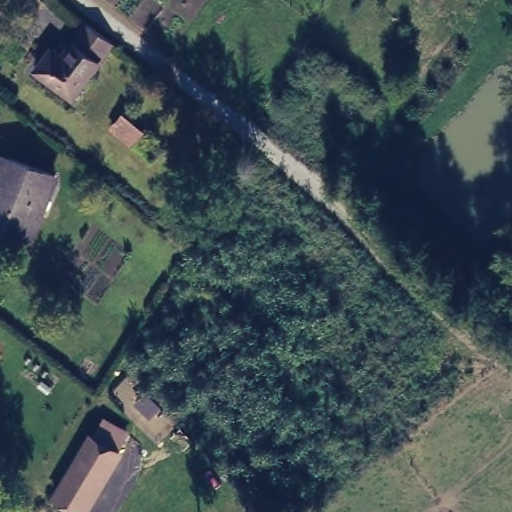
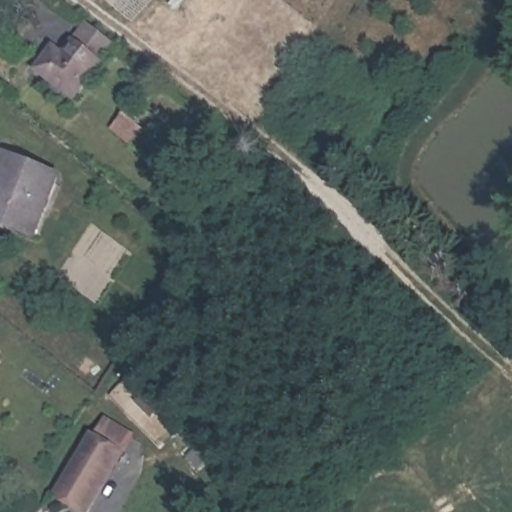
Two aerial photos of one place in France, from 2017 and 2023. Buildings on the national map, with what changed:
unchanged [(70,97),(36,67),(52,49),(62,58),(90,29),(114,48),(70,97)]
unchanged [(0,226),(0,182),(10,161),(57,181),(31,241),(0,226)]
unchanged [(130,434),(91,512),(80,512),(55,498),(102,416),(130,434)]

